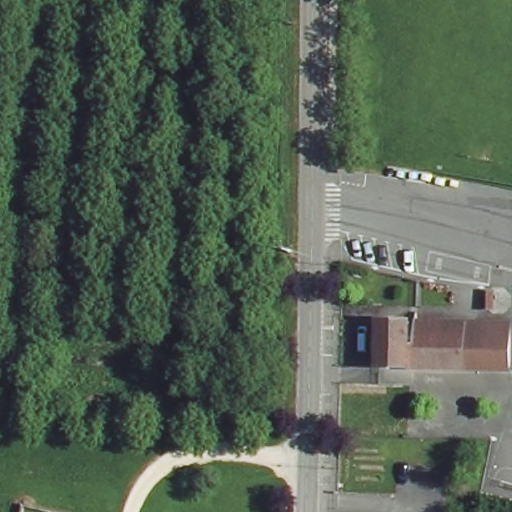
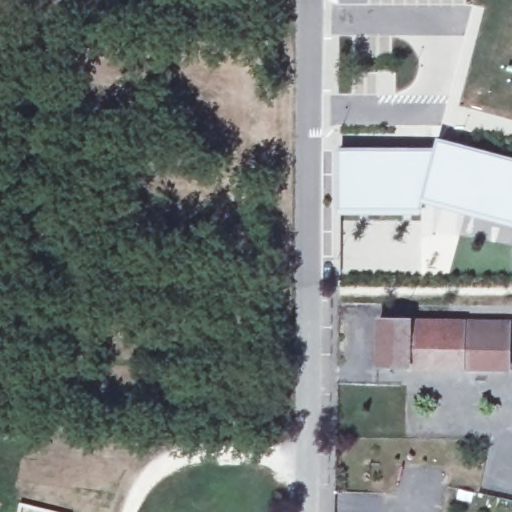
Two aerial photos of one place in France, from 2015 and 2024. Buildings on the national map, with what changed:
new [(435,138),(512,160),(512,229),(420,205),(421,276),(340,275),(339,216),(335,216),(336,149),(433,149),(435,138)]
unchanged [(512,320),(512,366),(385,366),(386,319),(512,320)]
demolished [(512,440),(512,484),(479,478),(487,435),(512,440)]

